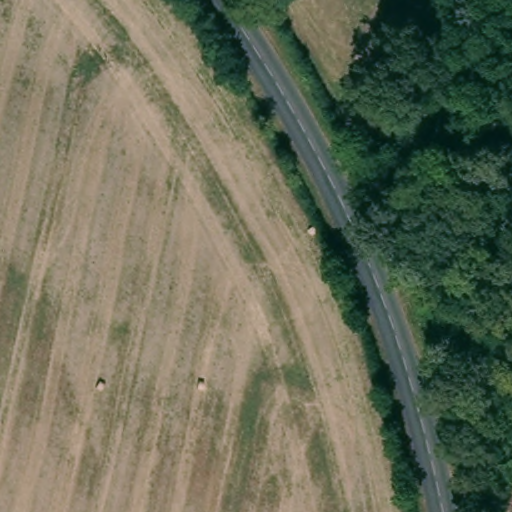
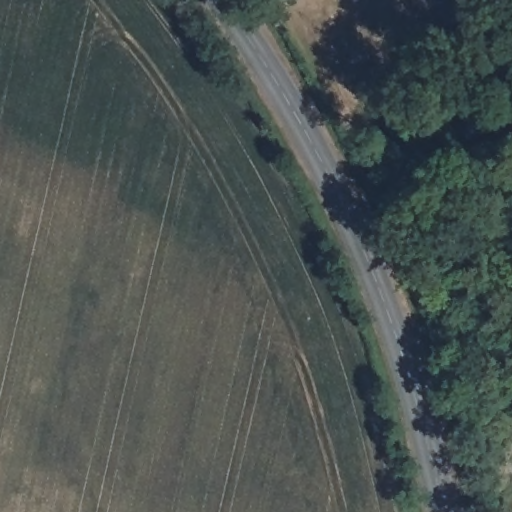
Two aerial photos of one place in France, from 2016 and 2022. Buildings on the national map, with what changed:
[]

